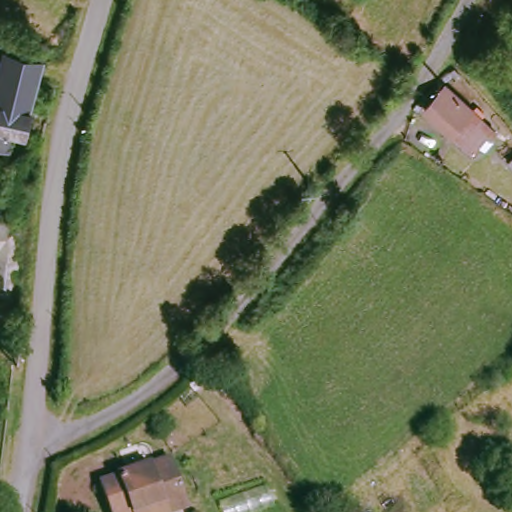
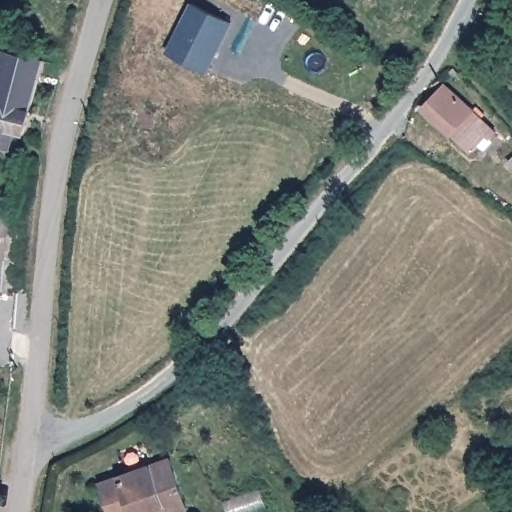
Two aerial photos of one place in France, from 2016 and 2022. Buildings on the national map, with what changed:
new [(191,7),(229,27),(202,75),(165,54),(191,7)]
unchanged [(1,172),(0,171),(0,83),(4,69),(6,62),(16,44),(40,61),(36,77),(19,158),(6,155),(1,172)]
unchanged [(493,122),(498,129),(482,146),(476,142),(470,151),(416,109),(438,82),(493,122)]
unchanged [(10,296),(0,294),(0,223),(23,228),(10,296)]
unchanged [(167,456),(187,509),(179,512),(106,512),(95,484),(167,456)]

